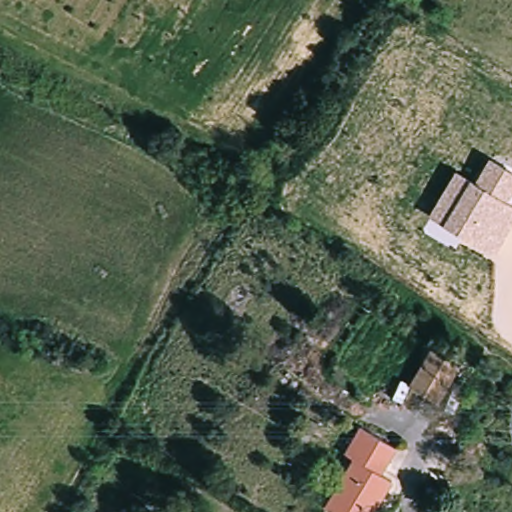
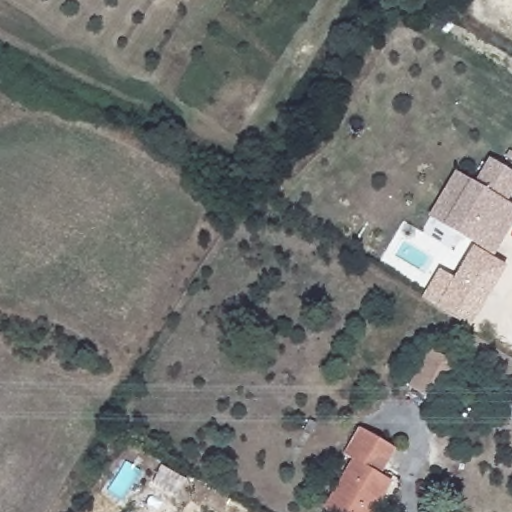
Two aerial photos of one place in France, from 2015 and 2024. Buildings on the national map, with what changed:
unchanged [(496,254),(430,215),(455,170),(475,181),(490,158),(512,172),(512,191),(506,202),(512,206),(512,225),(496,254)]
new [(470,328),(436,307),(422,298),(440,268),(455,277),(474,245),(508,266),(470,328)]
unchanged [(455,367),(430,406),(402,388),(427,349),(455,367)]
unchanged [(324,512),(321,510),(351,462),(340,455),(356,428),(389,449),(380,463),(372,475),(390,486),(373,512),(324,512)]

